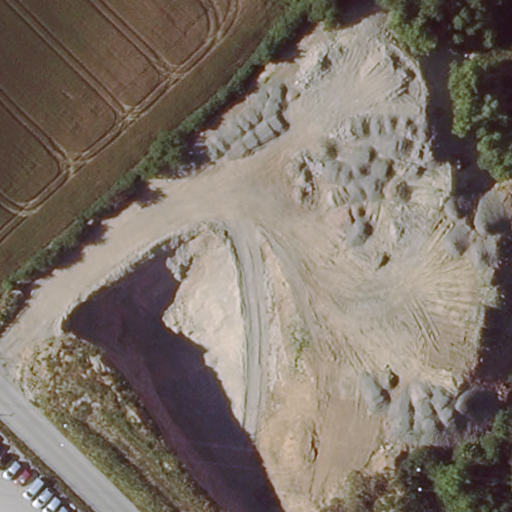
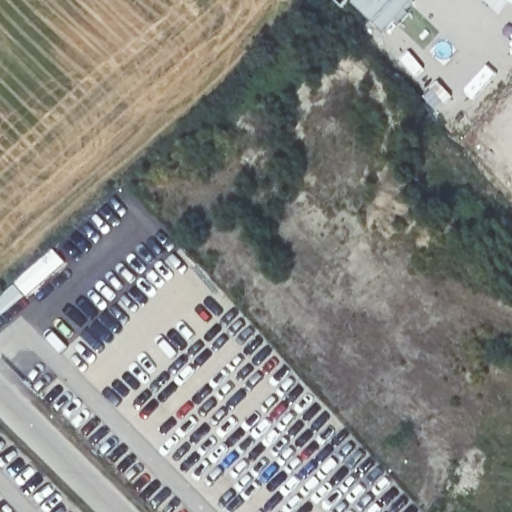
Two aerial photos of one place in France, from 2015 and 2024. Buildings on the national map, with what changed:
new [(411,0),(415,3),(385,36),(351,4),(355,0),(411,0)]
new [(512,7),(502,16),(486,0),(509,0),(512,3),(512,7)]

